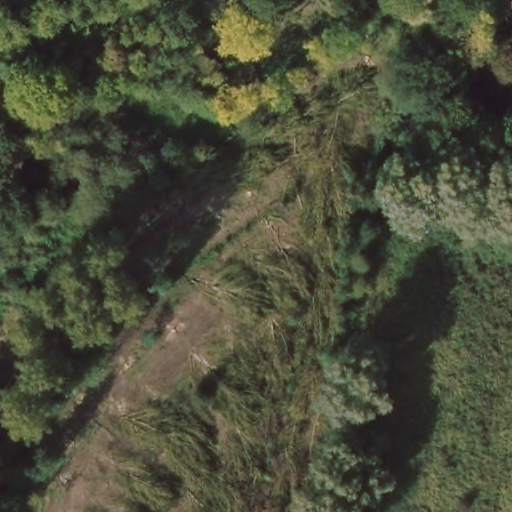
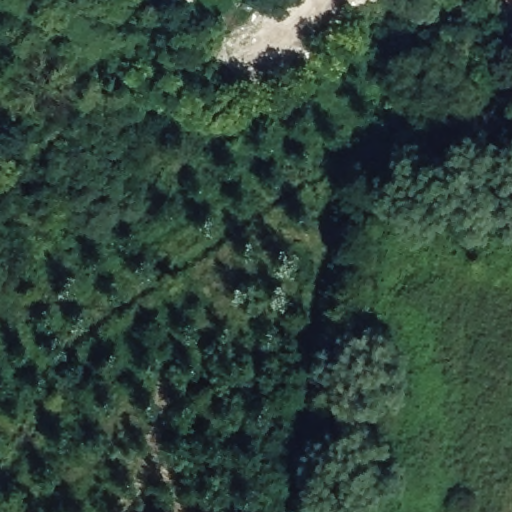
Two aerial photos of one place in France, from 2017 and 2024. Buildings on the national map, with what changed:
unchanged [(504,5),(502,0),(512,0),(512,2),(504,5)]

